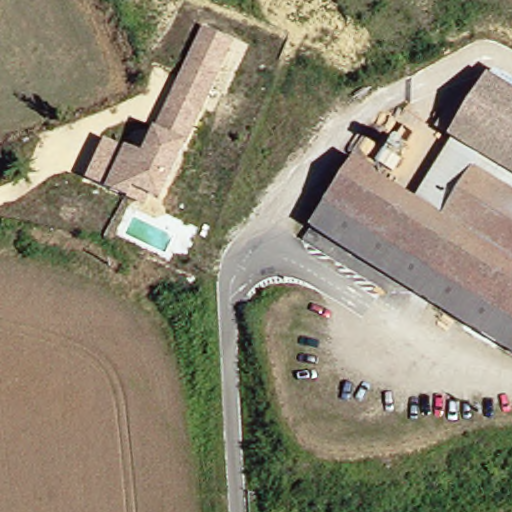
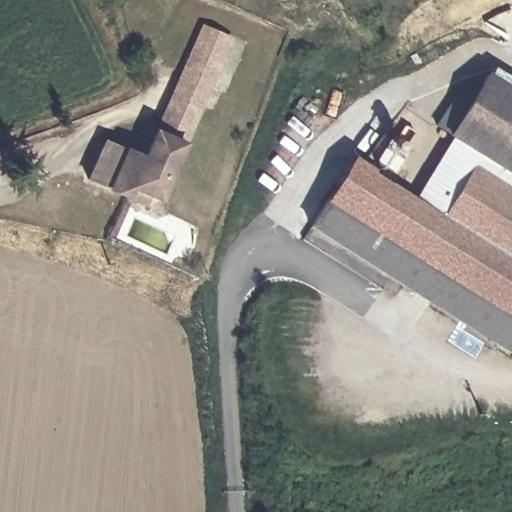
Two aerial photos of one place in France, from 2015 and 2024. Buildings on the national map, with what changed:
unchanged [(226,34),(148,208),(123,197),(120,202),(79,185),(97,145),(115,154),(133,162),(197,21),(226,34)]
unchanged [(512,173),(451,135),(489,74),(512,88),(512,173)]
unchanged [(512,173),(512,191),(474,167),(443,217),(412,197),(451,135),(512,173)]
unchanged [(409,147),(389,183),(412,197),(443,217),(474,167),(512,191),(512,353),(312,226),(356,157),(372,167),(391,138),(409,147)]

